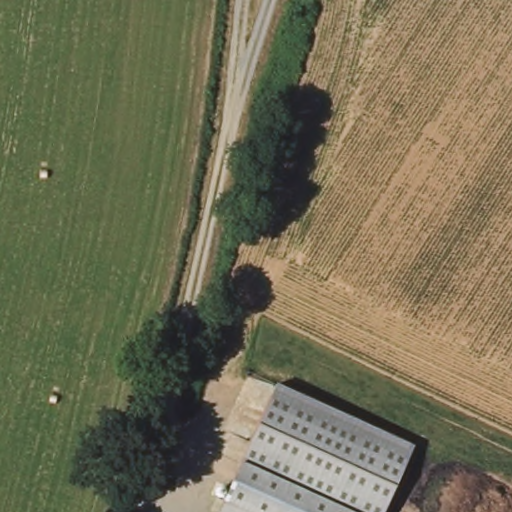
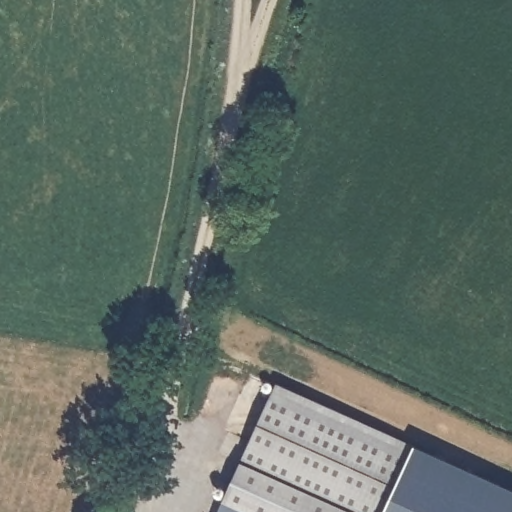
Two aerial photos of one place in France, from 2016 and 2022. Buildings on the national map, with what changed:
unchanged [(411,445),(380,512),(354,512),(255,474),(235,467),(274,382),(411,445)]
new [(512,512),(380,512),(411,445),(512,489),(512,512)]
unchanged [(218,512),(235,467),(354,512),(218,512)]

